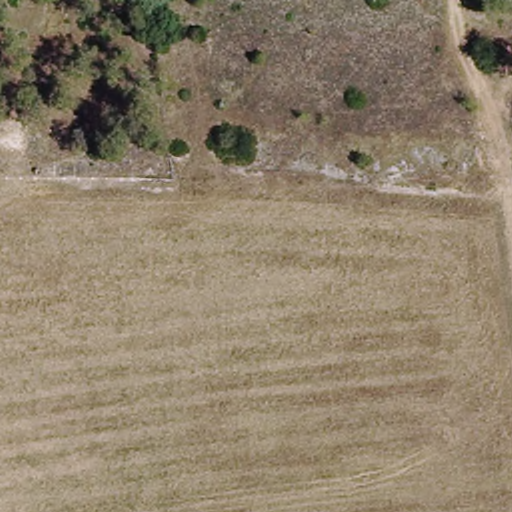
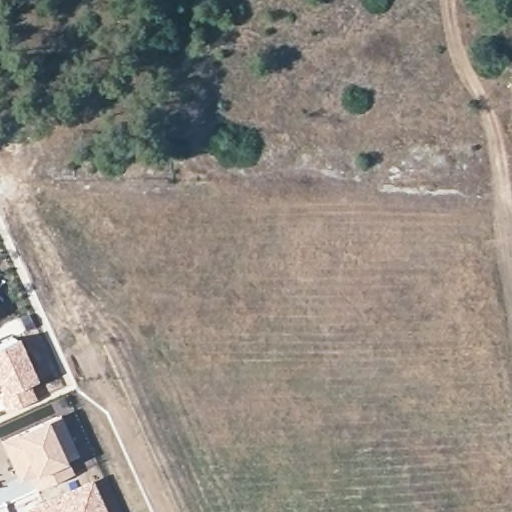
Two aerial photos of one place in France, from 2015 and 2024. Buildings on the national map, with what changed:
new [(15,335),(35,380),(29,383),(36,399),(4,412),(2,409),(0,405),(0,342),(15,335)]
new [(35,490),(29,478),(16,483),(9,469),(0,447),(0,437),(46,419),(58,414),(77,455),(66,460),(72,474),(35,490)]
new [(91,479),(106,512),(24,512),(23,509),(91,479)]

